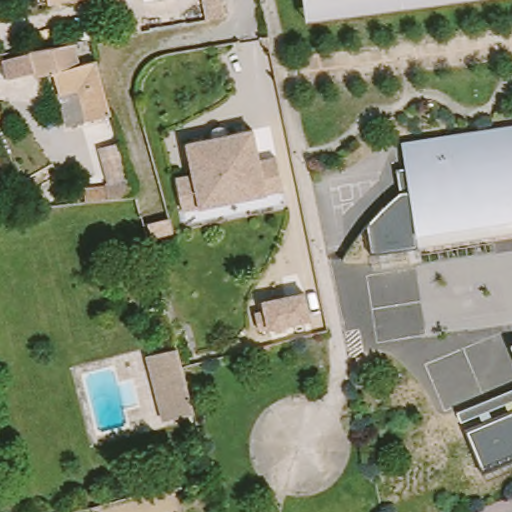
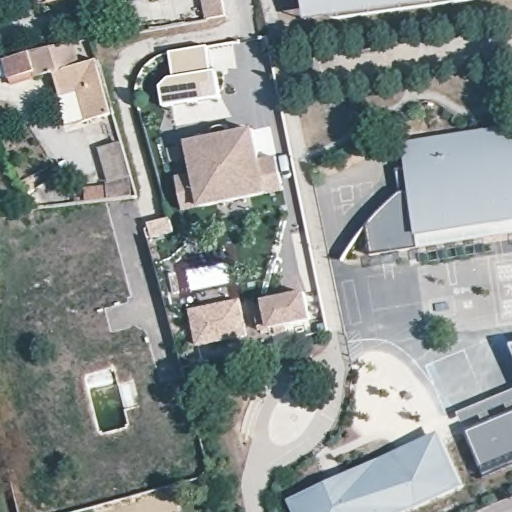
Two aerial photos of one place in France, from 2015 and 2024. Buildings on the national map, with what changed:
unchanged [(50,0),(87,0),(87,1),(51,8),(50,0)]
new [(151,30),(145,0),(182,0),(187,24),(151,30)]
new [(208,20),(205,0),(225,0),(228,17),(208,20)]
unchanged [(474,0),(304,25),(300,0),(474,0)]
unchanged [(94,59),(109,113),(66,124),(58,94),(51,71),(34,76),(26,50),(71,43),(77,64),(94,59)]
new [(174,78),(170,54),(207,47),(211,72),(216,71),(221,96),(164,104),(161,87),(169,79),(174,78)]
unchanged [(512,127),(512,233),(416,247),(397,145),(512,127)]
unchanged [(173,175),(191,172),(183,141),(248,128),(256,159),(273,155),(279,186),(263,189),(198,203),(181,207),(173,175)]
new [(99,190),(109,189),(97,148),(120,140),(138,197),(113,199),(101,200),(79,203),(78,192),(99,189),(99,190)]
demolished [(99,189),(99,190),(101,200),(79,203),(78,192),(99,189)]
unchanged [(416,247),(374,254),(368,225),(399,194),(406,192),(416,247)]
unchanged [(264,328),(259,306),(304,295),(309,317),(264,328)]
new [(248,335),(196,345),(189,310),(238,300),(248,335)]
unchanged [(511,345),(512,345),(512,347),(511,345)]
unchanged [(178,348),(196,413),(163,421),(145,359),(178,348)]
unchanged [(486,426),(481,414),(462,422),(457,413),(512,388),(512,458),(484,471),(468,433),(486,426)]
new [(436,433),(439,439),(396,459),(367,476),(331,492),(326,480),(436,433)]
new [(286,498),(326,480),(331,492),(367,476),(396,459),(439,439),(459,486),(398,512),(293,512),(286,498)]

